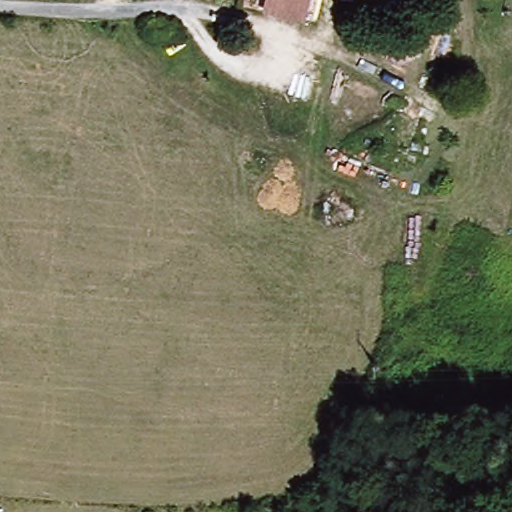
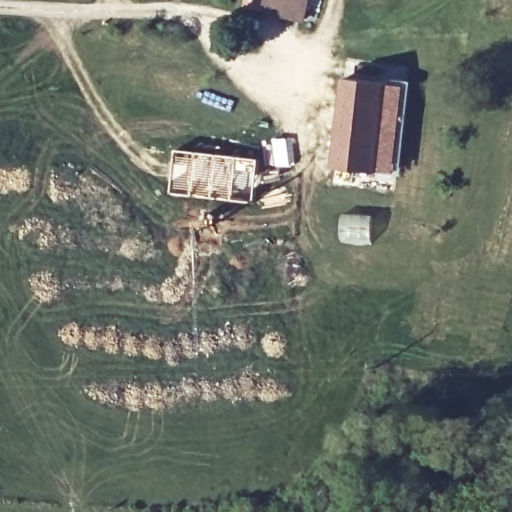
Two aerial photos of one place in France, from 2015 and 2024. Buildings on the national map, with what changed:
unchanged [(265,10),(267,0),(309,0),(306,19),(265,10)]
new [(387,85),(376,174),(335,169),(344,80),(387,85)]
new [(253,201),(174,192),(178,150),(257,161),(253,201)]

